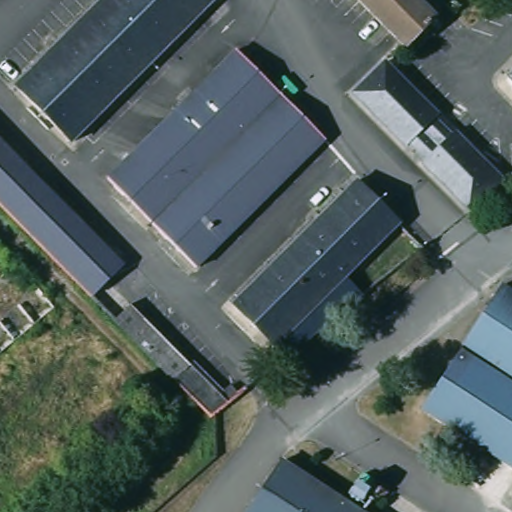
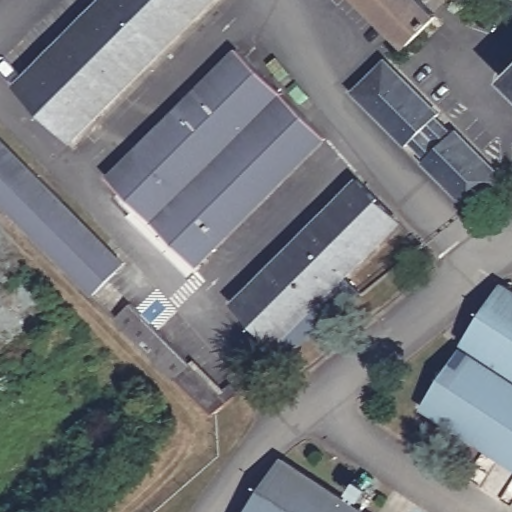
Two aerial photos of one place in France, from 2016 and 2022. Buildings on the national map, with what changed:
unchanged [(21,86),(108,0),(215,0),(75,139),(21,86)]
unchanged [(410,50),(360,0),(419,0),(440,20),(410,50)]
unchanged [(110,145),(134,121),(150,137),(238,50),(326,138),(199,265),(110,176),(125,160),(110,145)]
unchanged [(441,112),(436,119),(453,133),(459,130),(506,181),(470,210),(422,162),(426,159),(410,140),(407,143),(355,91),(385,59),(441,112)]
unchanged [(512,77),(512,83),(509,80),(512,77)]
unchanged [(124,263),(89,296),(0,206),(0,137),(40,177),(124,263)]
unchanged [(401,220),(349,274),(369,295),(290,358),(235,302),(359,178),(401,220)]
unchanged [(502,275),(512,282),(512,368),(462,336),(502,275)]
unchanged [(209,418),(110,318),(128,305),(225,404),(209,418)]
unchanged [(458,341),(512,376),(512,462),(420,401),(458,341)]
unchanged [(280,454),(368,512),(243,512),(280,454)]

